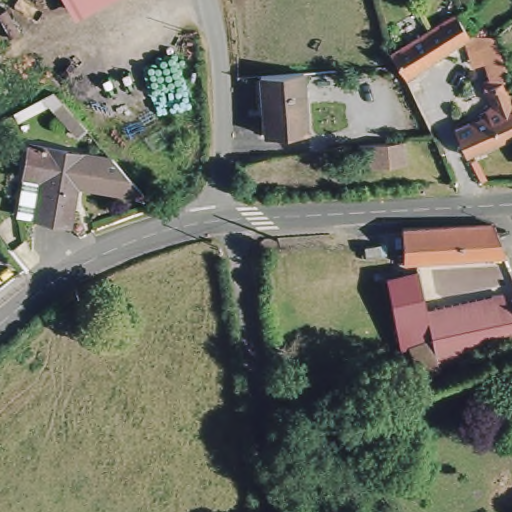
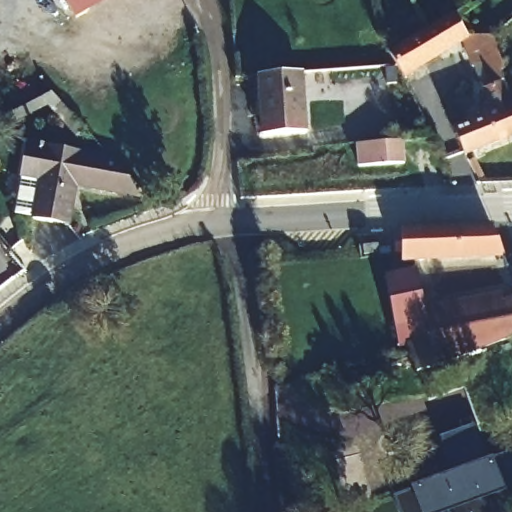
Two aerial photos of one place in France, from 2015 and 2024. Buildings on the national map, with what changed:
unchanged [(62,2),(61,0),(67,0),(62,2)]
unchanged [(405,71),(397,60),(391,49),(454,8),(467,31),(438,50),(444,59),(432,67),(427,58),(412,67),(417,69),(435,106),(435,110),(425,115),(408,79),(405,71)]
unchanged [(501,65),(497,67),(512,102),(512,135),(465,153),(452,127),(480,115),(477,111),(490,106),(480,82),(486,79),(475,46),(491,39),(501,65)]
unchanged [(300,72),(303,130),(264,132),(262,106),(255,106),(251,75),(300,72)]
unchanged [(402,140),(404,162),(357,165),(355,143),(402,140)]
unchanged [(72,141),(72,146),(75,186),(77,212),(40,214),(37,176),(21,176),(20,143),(72,141)]
unchanged [(107,153),(144,197),(75,186),(72,146),(107,153)]
unchanged [(400,226),(490,223),(503,255),(402,257),(396,257),(395,251),(401,251),(400,229),(400,226)]
unchanged [(417,270),(426,312),(499,289),(505,300),(512,297),(512,335),(505,338),(455,357),(437,364),(432,341),(409,344),(400,346),(385,276),(402,273),(417,270)]
unchanged [(505,338),(512,335),(512,354),(505,338)]
new [(440,436),(475,423),(486,459),(493,457),(512,449),(512,489),(506,491),(496,495),(502,512),(399,512),(393,496),(410,487),(453,472),(440,436)]

